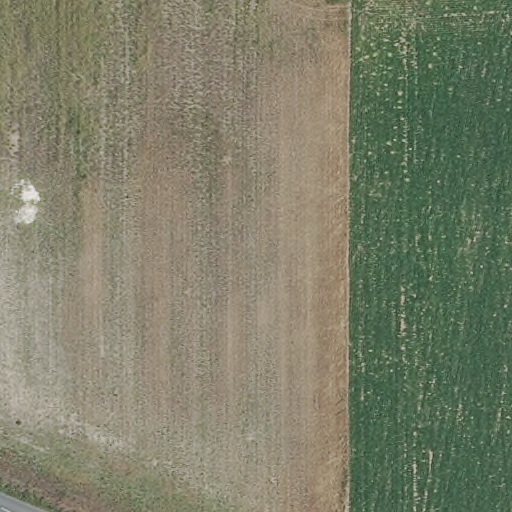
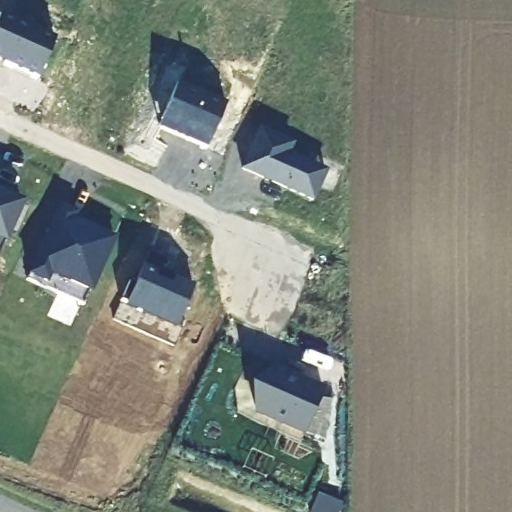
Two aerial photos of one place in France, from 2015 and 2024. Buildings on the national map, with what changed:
new [(0,62),(0,15),(1,13),(54,39),(35,79),(0,62)]
new [(226,103),(205,149),(157,129),(179,81),(226,103)]
new [(295,141),(290,153),(328,169),(313,204),(240,170),(260,125),(295,141)]
new [(23,204),(4,246),(2,245),(0,248),(0,193),(23,204)]
new [(116,238),(92,294),(87,292),(82,304),(27,279),(27,277),(25,276),(59,204),(78,213),(75,219),(116,238)]
new [(124,306),(143,264),(157,252),(165,262),(157,270),(195,285),(175,329),(124,306)]
new [(245,412),(267,363),(325,389),(302,438),(245,412)]

